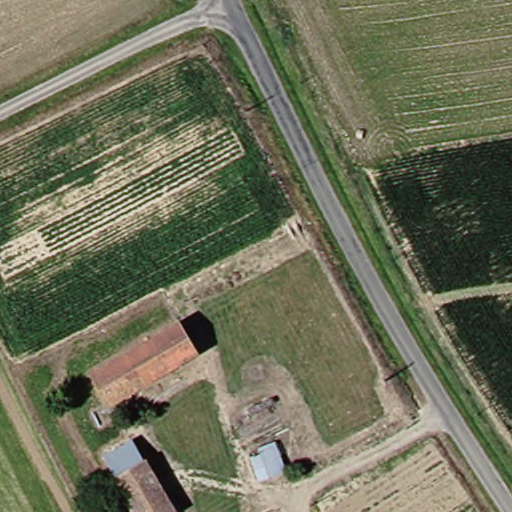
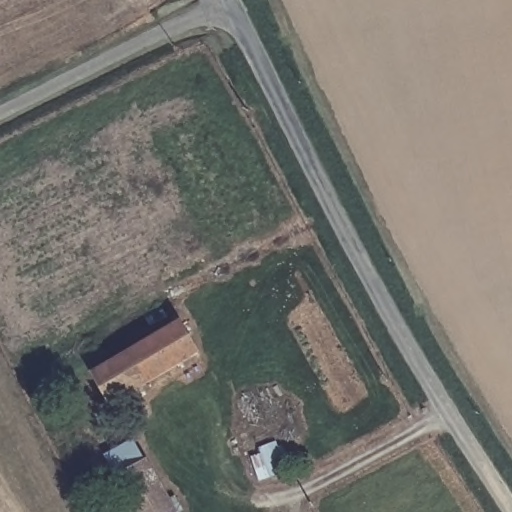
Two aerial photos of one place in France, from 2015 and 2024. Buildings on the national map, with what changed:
unchanged [(107,403),(91,375),(176,326),(195,356),(107,403)]
unchanged [(175,512),(140,512),(120,474),(108,455),(135,441),(145,461),(149,460),(175,512)]

